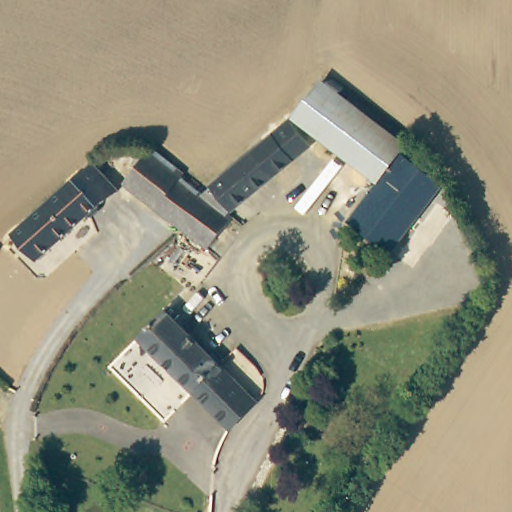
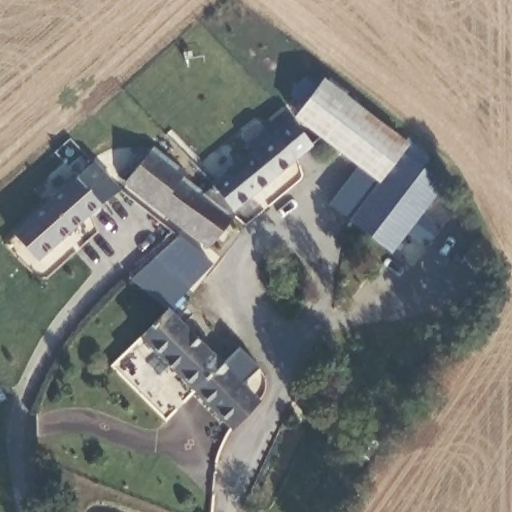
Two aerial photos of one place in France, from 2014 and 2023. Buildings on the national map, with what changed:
unchanged [(294,111),(303,101),(324,81),(402,152),(393,161),(370,184),(294,111)]
unchanged [(315,138),(238,212),(245,219),(218,248),(125,188),(149,150),(187,173),(184,185),(202,196),(291,114),(315,138)]
unchanged [(106,184),(110,187),(93,203),(93,208),(86,215),(80,214),(33,256),(31,258),(8,232),(84,160),(106,184)]
unchanged [(429,197),(370,256),(335,222),(370,184),(393,161),(429,197)]
new [(171,307),(168,305),(163,310),(130,280),(179,235),(212,264),(171,307)]
unchanged [(228,424),(228,425),(191,386),(143,334),(140,331),(150,322),(168,305),(256,399),(228,424)]

